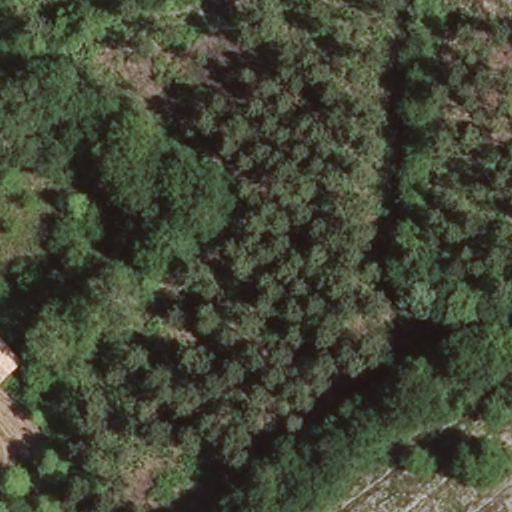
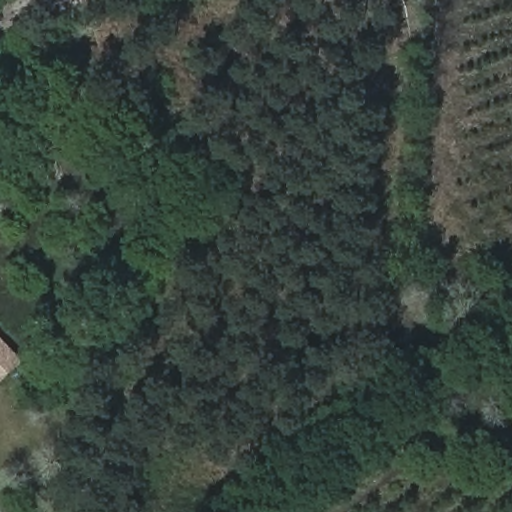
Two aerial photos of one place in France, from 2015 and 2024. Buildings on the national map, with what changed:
unchanged [(0,340),(22,360),(2,383),(0,382),(0,340)]

